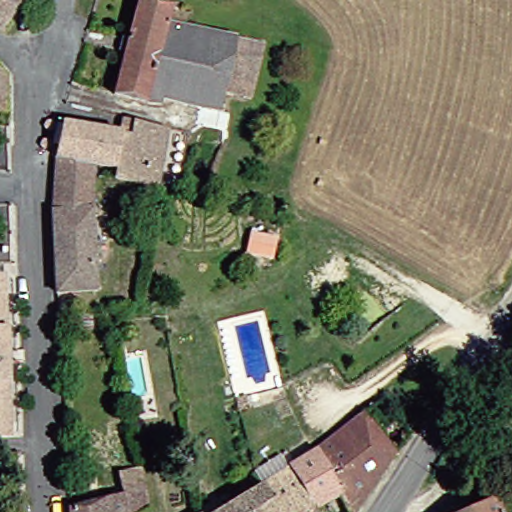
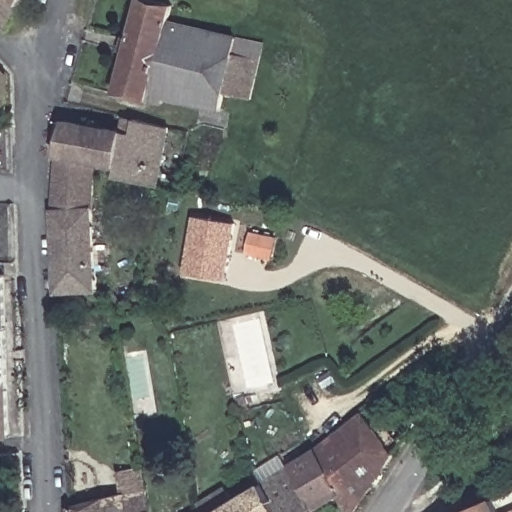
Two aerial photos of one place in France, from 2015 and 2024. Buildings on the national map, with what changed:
unchanged [(38,0),(32,10),(30,9),(18,30),(0,21),(0,0),(38,0)]
unchanged [(261,102),(243,98),(241,111),(232,110),(232,113),(173,100),(172,106),(126,97),(152,1),(184,10),(183,22),(189,23),(189,30),(274,47),(261,102)]
unchanged [(7,117),(0,82),(0,56),(25,80),(26,120),(7,117)]
unchanged [(133,122),(143,122),(181,129),(172,185),(171,192),(120,184),(121,169),(104,165),(68,159),(76,124),(131,135),(133,122)]
unchanged [(104,165),(103,206),(109,287),(68,290),(63,208),(68,159),(104,165)]
unchanged [(270,227),(261,230),(256,216),(264,212),(270,227)]
new [(192,216),(236,224),(226,282),(183,275),(192,216)]
new [(246,255),(251,231),(279,237),(274,261),(246,255)]
unchanged [(7,276),(9,331),(0,332),(0,277),(7,276)]
unchanged [(166,289),(146,290),(146,280),(168,278),(166,289)]
unchanged [(9,331),(12,387),(0,388),(0,332),(9,331)]
unchanged [(12,387),(14,440),(0,440),(0,388),(12,387)]
unchanged [(369,418),(390,401),(414,436),(415,440),(399,458),(369,418)]
unchanged [(342,501),(324,512),(316,512),(294,473),(309,465),(369,418),(399,458),(361,512),(348,512),(342,501)]
unchanged [(136,459),(149,457),(154,488),(159,512),(79,512),(78,505),(141,493),(136,459)]
unchanged [(268,488),(271,485),(268,479),(264,482),(261,476),(285,461),(292,474),(294,473),(316,512),(280,512),(268,488)]
unchanged [(261,492),(268,488),(280,512),(229,512),(261,492)]
unchanged [(512,497),(512,512),(476,512),(512,497)]

